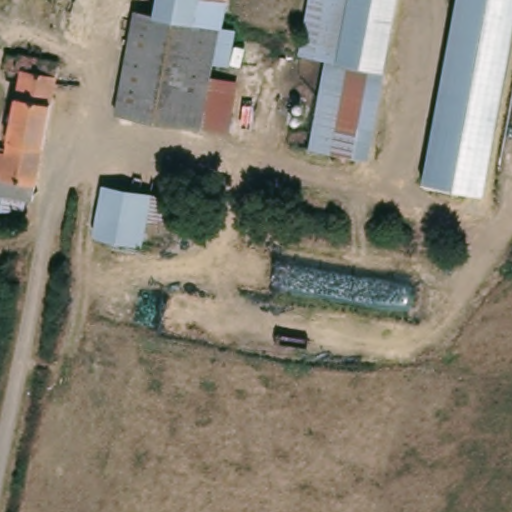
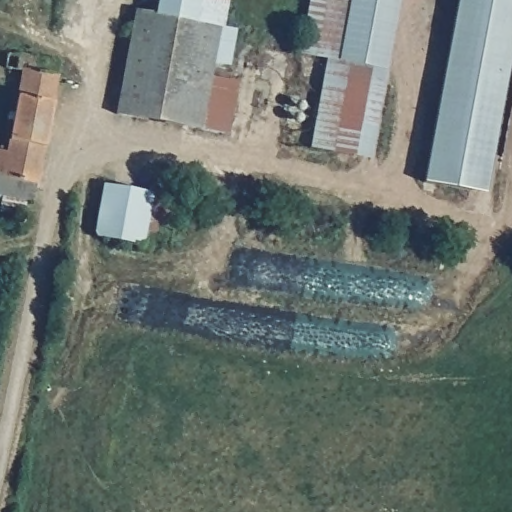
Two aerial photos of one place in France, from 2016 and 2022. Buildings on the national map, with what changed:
unchanged [(228,0),(222,24),(219,24),(153,9),(156,0),(228,0)]
unchanged [(389,0),(373,67),(331,57),(297,49),(300,36),(307,0),(389,0)]
unchanged [(435,191),(476,0),(512,0),(512,118),(494,204),(435,191)]
unchanged [(206,76),(195,124),(112,105),(135,5),(153,9),(219,24),(206,76)]
unchanged [(0,151),(3,151),(21,72),(4,68),(7,50),(61,60),(31,206),(0,199),(0,151)]
unchanged [(311,146),(331,57),(373,67),(358,155),(311,146)]
unchanged [(237,84),(228,132),(195,124),(206,76),(237,84)]
unchanged [(168,225),(141,220),(136,233),(90,224),(102,184),(103,180),(173,196),(174,199),(168,225)]

